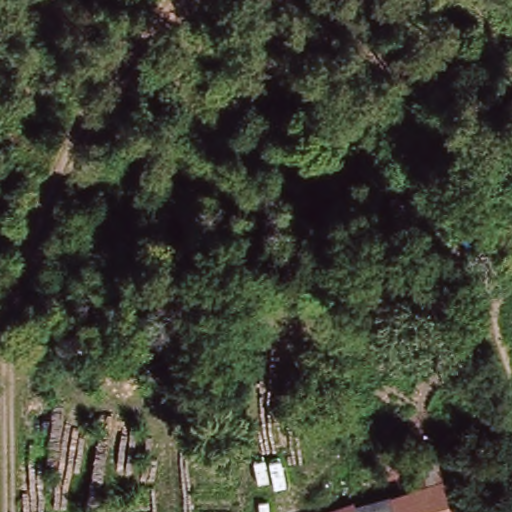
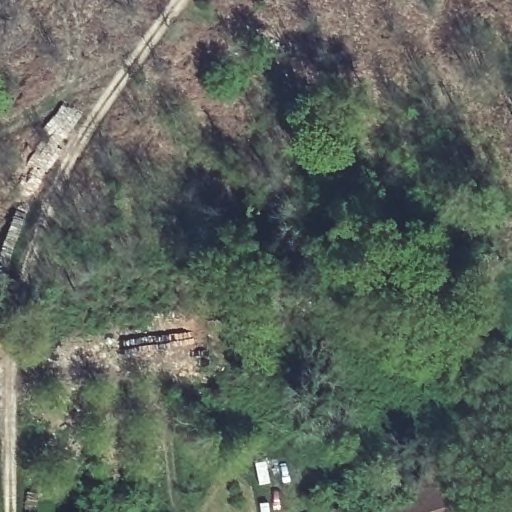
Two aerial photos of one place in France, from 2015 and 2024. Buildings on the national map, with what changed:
unchanged [(438,471),(453,512),(412,512),(402,484),(438,471)]
unchanged [(339,484),(360,475),(367,496),(402,484),(412,512),(345,512),(362,506),(359,498),(345,503),(339,484)]

